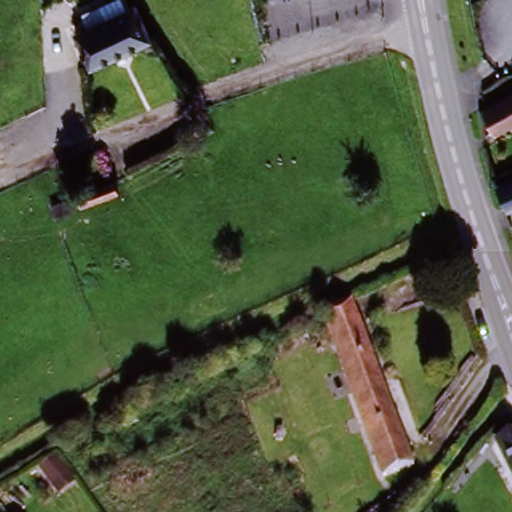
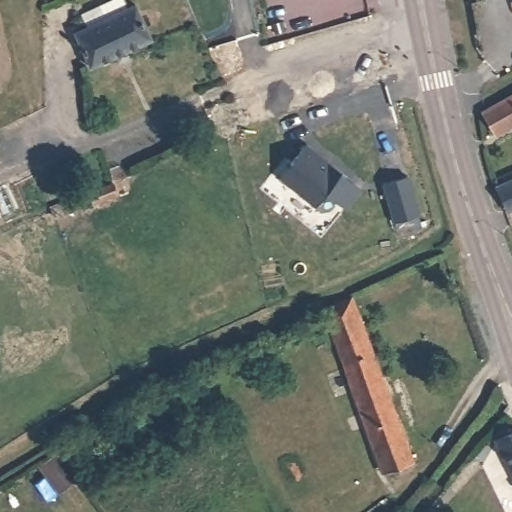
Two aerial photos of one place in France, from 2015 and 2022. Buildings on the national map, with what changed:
unchanged [(94,73),(75,39),(133,5),(153,40),(94,73)]
unchanged [(484,117),(512,100),(512,128),(497,137),(484,117)]
new [(364,190),(346,210),(326,194),(316,207),(279,177),(306,144),(364,190)]
new [(409,177),(422,220),(397,227),(384,185),(409,177)]
unchanged [(96,192),(61,211),(54,199),(89,178),(96,192)]
unchanged [(512,208),(509,210),(502,190),(512,185),(512,208)]
unchanged [(414,466),(387,475),(326,307),(354,296),(414,466)]
unchanged [(512,468),(503,445),(512,441),(512,468)]

